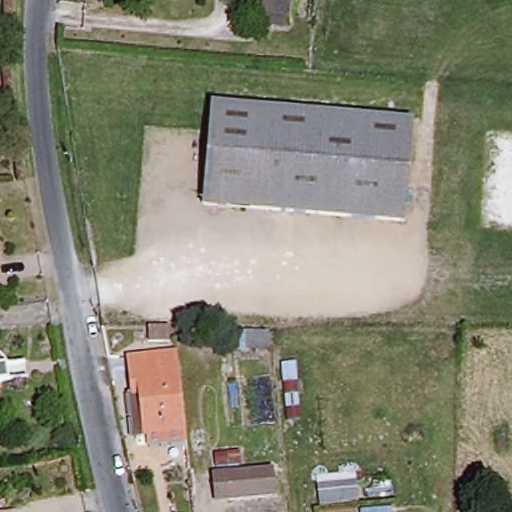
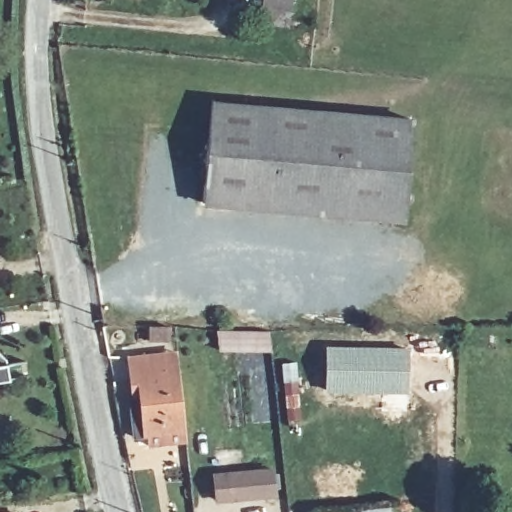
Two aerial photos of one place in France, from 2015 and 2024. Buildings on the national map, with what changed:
unchanged [(269,0),(294,0),(293,11),(268,8),(269,0)]
unchanged [(405,220),(205,202),(214,102),(413,120),(405,220)]
new [(271,329),(271,352),(216,351),(215,329),(271,329)]
unchanged [(167,332),(166,341),(146,341),(145,331),(167,332)]
new [(325,345),(410,346),(408,394),(324,392),(325,345)]
unchanged [(0,350),(4,356),(16,356),(20,378),(6,381),(0,397),(0,350)]
unchanged [(150,430),(135,432),(127,355),(162,352),(175,350),(176,365),(185,435),(151,439),(150,430)]
unchanged [(296,360),(301,421),(285,423),(280,363),(296,360)]
unchanged [(356,470),(357,501),(318,505),(313,475),(356,470)]
unchanged [(220,506),(217,483),(282,477),(285,499),(253,502),(220,506)]
unchanged [(392,512),(360,512),(360,509),(391,507),(392,512)]
unchanged [(15,509),(15,512),(0,512),(0,510),(15,509)]

